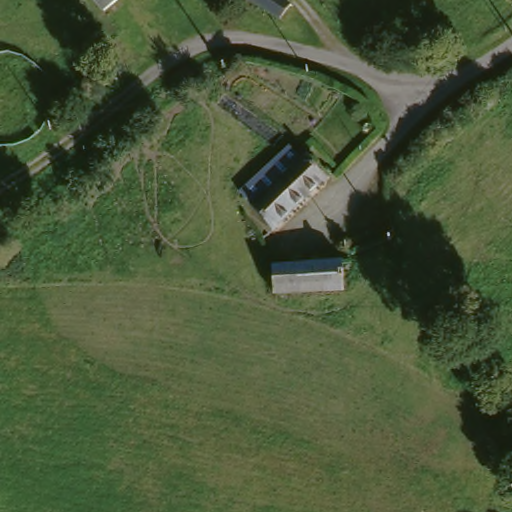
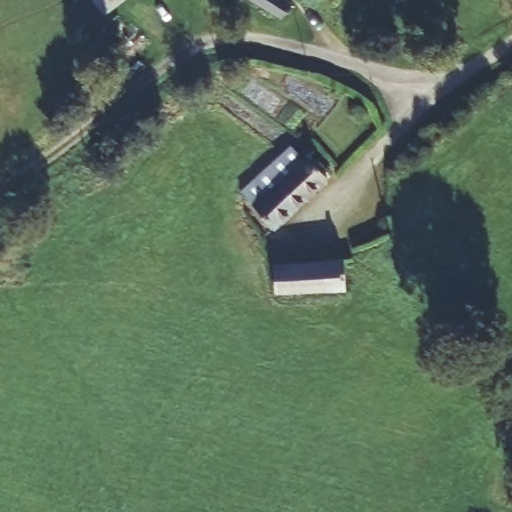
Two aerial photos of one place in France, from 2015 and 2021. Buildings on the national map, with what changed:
unchanged [(121,0),(108,12),(97,0),(121,0)]
unchanged [(245,0),(276,0),(289,10),(278,24),(271,22),(245,0)]
unchanged [(234,192),(286,147),(296,158),(302,152),(326,180),(269,231),(234,192)]
unchanged [(351,262),(353,290),(339,288),(339,298),(295,300),(266,301),(266,268),(292,267),(336,264),(351,262)]

